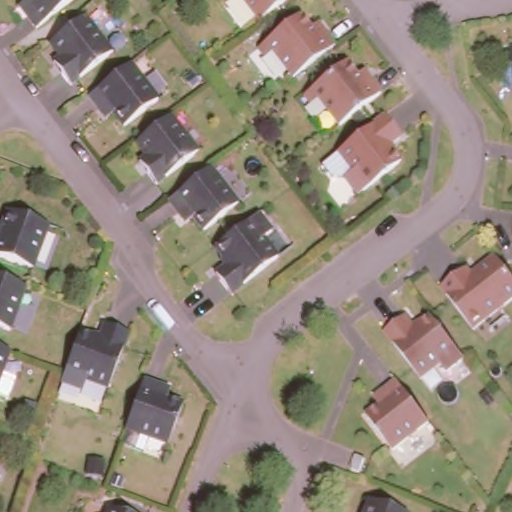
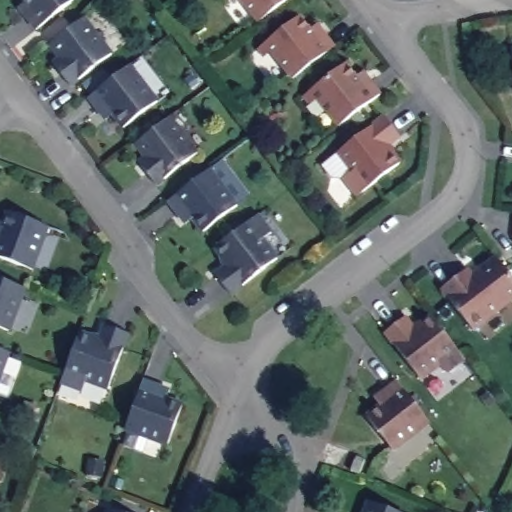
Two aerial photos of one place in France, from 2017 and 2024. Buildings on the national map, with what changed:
unchanged [(75,0),(35,30),(26,18),(18,8),(25,3),(23,0),(75,0)]
unchanged [(287,0),(263,18),(250,0),(287,0)]
unchanged [(60,54),(49,40),(83,14),(111,50),(70,81),(60,69),(52,59),(60,54)]
unchanged [(270,44),(305,17),(315,30),(321,25),(329,35),(339,48),(297,79),(270,44)]
unchanged [(487,45),(489,59),(477,61),(475,48),(487,45)]
unchanged [(512,46),(512,55),(510,46),(512,46)]
unchanged [(311,91),(345,64),(355,78),(362,73),(370,83),(380,95),(338,126),(311,91)]
unchanged [(98,110),(88,98),(130,65),(157,102),(122,128),(112,114),(105,120),(98,110)]
unchanged [(140,153),(130,139),(165,113),(192,149),(151,180),(141,168),(133,158),(140,153)]
unchanged [(400,138),(387,147),(400,164),(365,190),(337,153),(384,117),(400,138)]
unchanged [(173,209),(163,197),(205,164),(232,201),(197,228),(187,214),(180,219),(173,209)]
unchanged [(0,256),(0,213),(2,208),(42,223),(26,265),(0,256)]
unchanged [(252,215),(265,234),(257,240),(272,259),(225,295),(210,275),(222,265),(209,249),(252,215)]
unchanged [(512,227),(512,236),(510,236),(512,227)]
unchanged [(512,295),(472,325),(440,284),(465,265),(471,272),(495,253),(512,274),(512,295)]
unchanged [(0,326),(0,277),(20,284),(3,327),(0,326)]
unchanged [(458,355),(440,369),(434,360),(415,375),(379,328),(400,313),(409,325),(425,312),(458,355)]
unchanged [(84,377),(80,386),(60,379),(78,328),(98,335),(104,321),(128,330),(107,385),(84,377)]
unchanged [(3,353),(0,362),(0,352),(3,353)]
unchanged [(142,448),(123,441),(128,427),(124,425),(142,377),(157,382),(169,387),(166,394),(182,401),(167,441),(147,434),(142,448)]
unchanged [(387,451),(360,417),(374,406),(384,399),(379,392),(391,382),(423,424),(387,451)]
unchanged [(362,497),(401,512),(356,512),(362,497)]
unchanged [(104,506),(123,512),(102,512),(104,506)]

